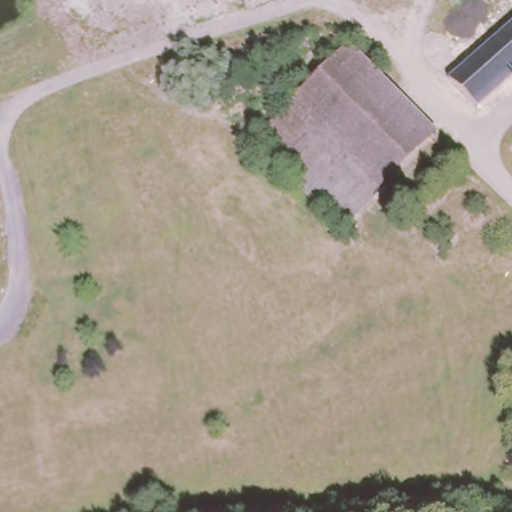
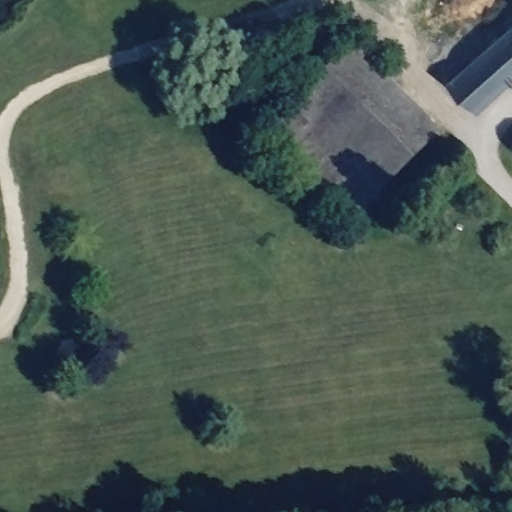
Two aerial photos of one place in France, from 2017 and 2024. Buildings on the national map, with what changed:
unchanged [(485,102),(457,74),(512,24),(512,78),(485,102)]
unchanged [(262,137),(340,62),(345,59),(425,147),(345,222),(262,137)]

